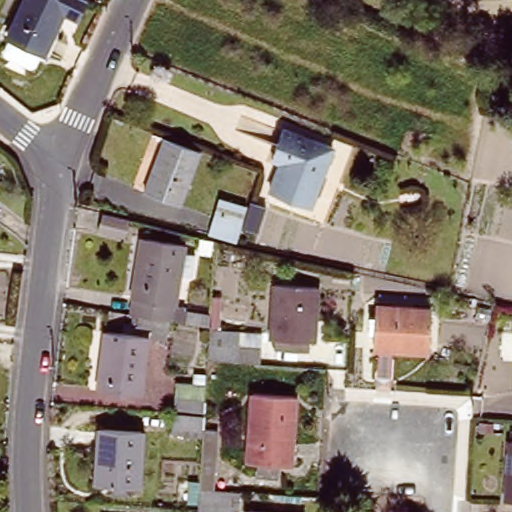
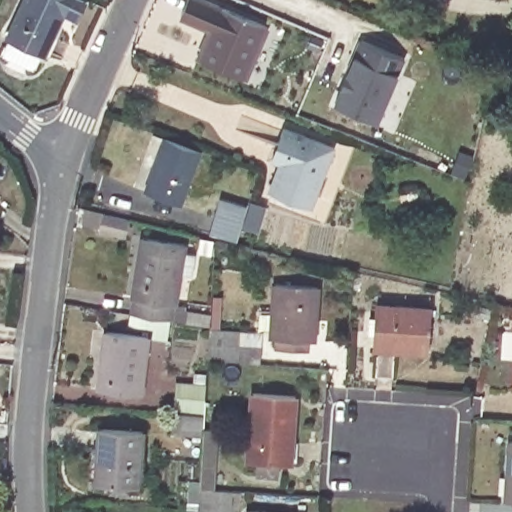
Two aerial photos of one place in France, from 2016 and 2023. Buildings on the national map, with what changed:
unchanged [(65,12),(47,55),(45,54),(40,66),(34,69),(10,57),(7,52),(12,40),(11,39),(28,0),(88,0),(80,19),(65,12)]
new [(247,80),(196,57),(207,30),(179,18),(187,0),(213,0),(222,4),(221,7),(268,27),(247,80)]
new [(361,42),(403,60),(375,124),(333,106),(361,42)]
unchanged [(268,192),(273,179),(280,163),(272,160),(275,151),(283,129),(315,142),(330,147),(315,191),(308,207),(268,192)]
unchanged [(143,192),(163,140),(199,152),(178,205),(143,192)]
unchanged [(207,231),(218,195),(245,203),(233,237),(207,231)]
unchanged [(240,222),(248,197),(263,203),(255,227),(240,222)]
unchanged [(95,229),(98,215),(125,221),(121,235),(95,229)]
unchanged [(178,303),(175,319),(123,311),(126,295),(124,293),(136,232),(179,240),(168,302),(178,303)]
unchanged [(313,337),(312,346),(280,343),(280,335),(274,335),(277,279),(320,281),(317,337),(313,337)]
unchanged [(372,349),(375,307),(428,309),(426,352),(372,349)]
unchanged [(263,343),(263,358),(212,355),(213,324),(242,327),(242,342),(263,343)]
unchanged [(97,391),(103,332),(145,337),(139,396),(97,391)]
unchanged [(200,436),(170,433),(171,412),(173,383),(205,386),(203,398),(215,400),(210,472),(198,472),(200,436)]
unchanged [(277,463),(276,477),(255,476),(257,462),(247,461),(250,395),(293,397),(290,465),(277,463)]
unchanged [(95,484),(98,428),(140,432),(137,487),(95,484)]
unchanged [(505,502),(509,441),(512,441),(512,503),(505,502)]
unchanged [(202,485),(234,487),(232,512),(200,512),(200,505),(202,485)]

